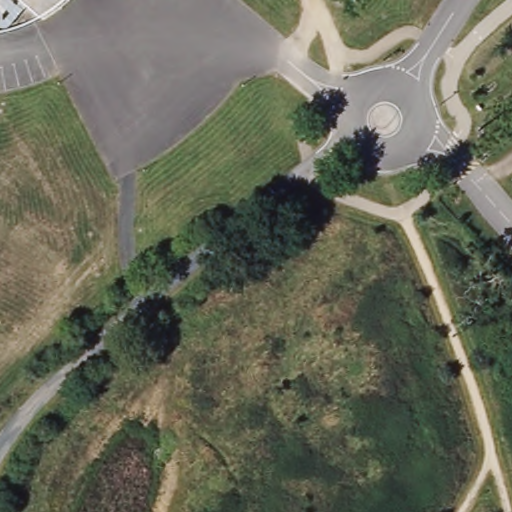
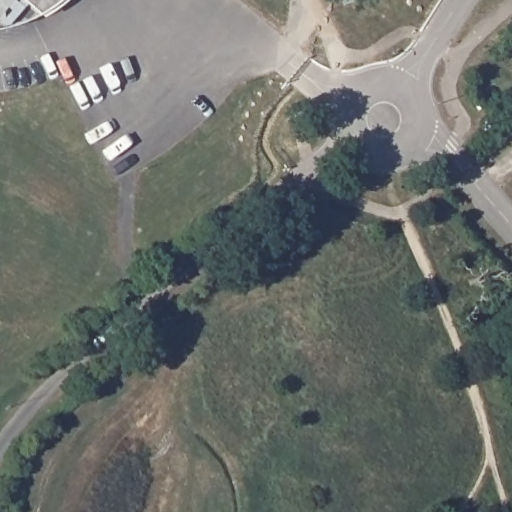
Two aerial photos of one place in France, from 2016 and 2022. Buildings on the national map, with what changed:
unchanged [(31,2),(28,4),(23,7),(16,10),(14,11),(4,15),(0,16),(0,0),(35,0),(31,2)]

